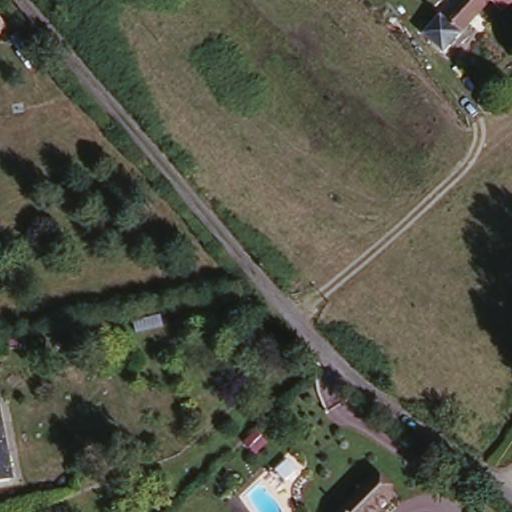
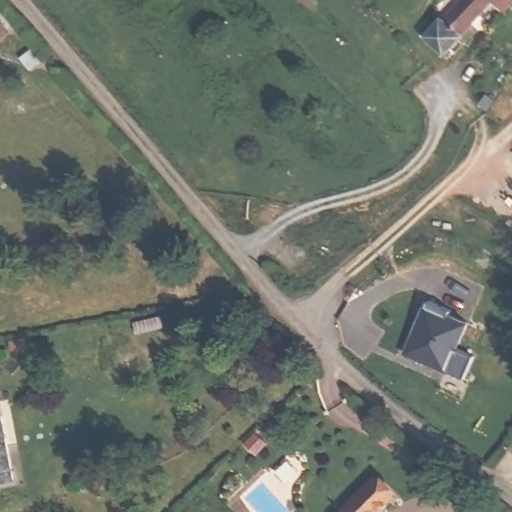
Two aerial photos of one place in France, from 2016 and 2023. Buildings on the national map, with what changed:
unchanged [(436,15),(441,17),(456,0),(482,0),(457,30),(460,33),(443,53),(421,34),(436,15)]
unchanged [(498,7),(491,0),(503,0),(498,7)]
unchanged [(9,32),(0,39),(0,21),(9,32)]
new [(428,302),(451,311),(449,316),(469,323),(459,349),(478,357),(470,380),(407,356),(428,302)]
new [(174,312),(177,325),(134,336),(131,323),(174,312)]
unchanged [(13,482),(0,486),(0,425),(13,482)]
unchanged [(338,512),(373,474),(393,492),(375,512),(338,512)]

